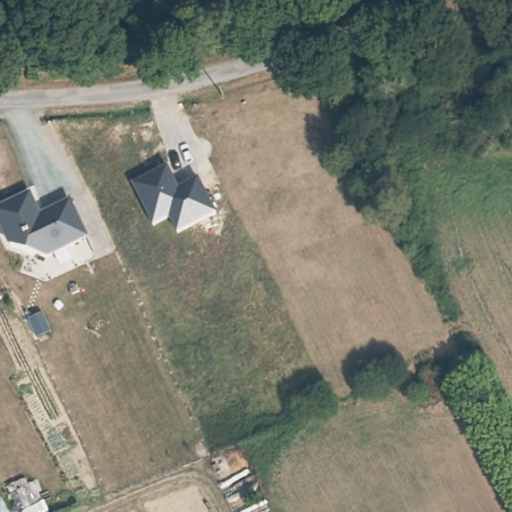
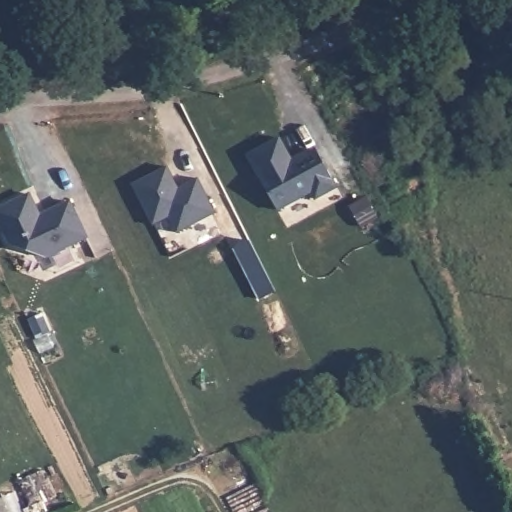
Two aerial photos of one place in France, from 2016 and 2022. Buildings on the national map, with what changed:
new [(313,144),(337,187),(316,199),(311,191),(279,210),(249,154),(282,135),(293,156),(313,144)]
unchanged [(180,234),(171,218),(156,226),(134,184),(170,165),(180,187),(200,178),(218,213),(180,234)]
unchanged [(40,211),(73,199),(90,237),(46,257),(9,245),(0,225),(0,208),(31,191),(40,211)]

